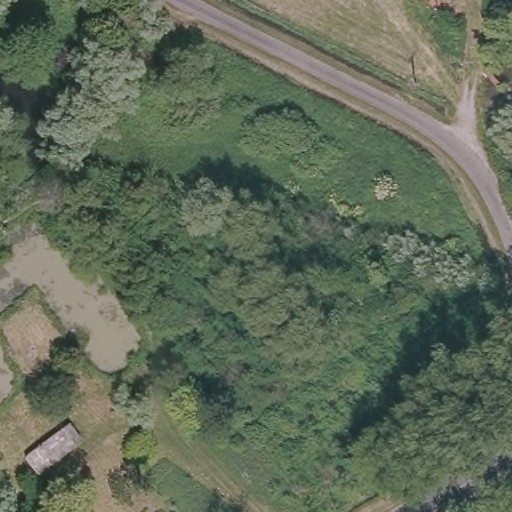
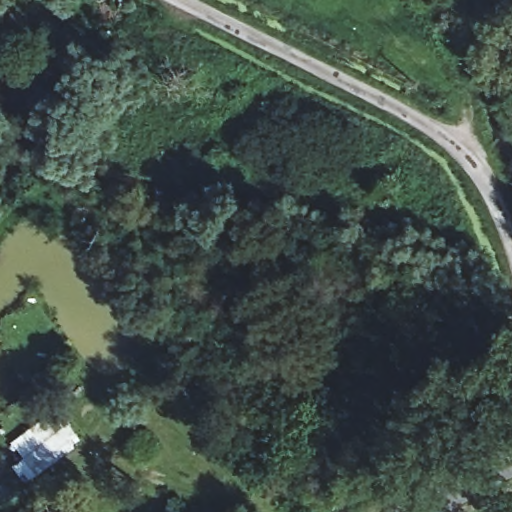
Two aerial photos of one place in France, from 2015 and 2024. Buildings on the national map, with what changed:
unchanged [(73,422),(81,440),(34,473),(23,455),(73,422)]

